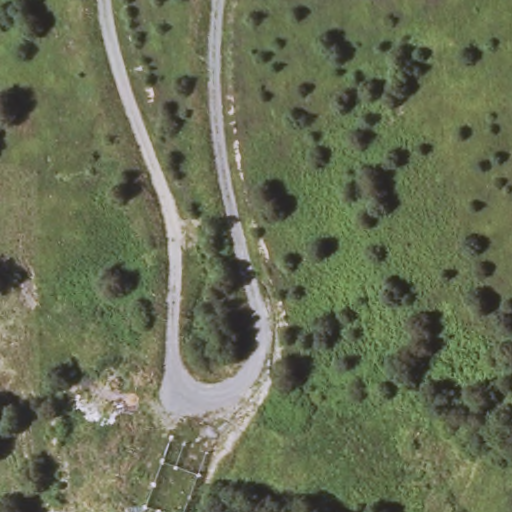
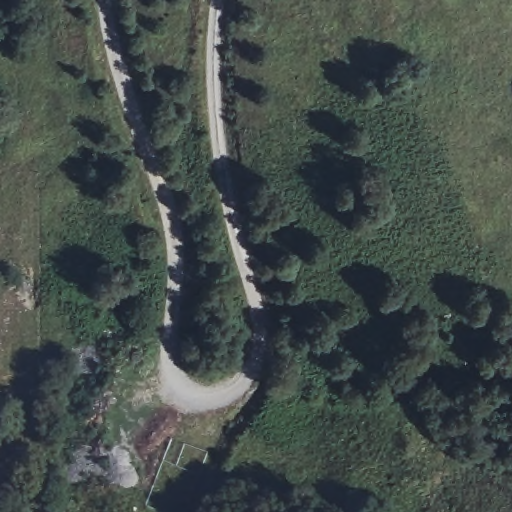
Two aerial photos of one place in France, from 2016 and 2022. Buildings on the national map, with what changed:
unchanged [(184,512),(161,512),(146,507),(169,440),(206,454),(184,512)]

